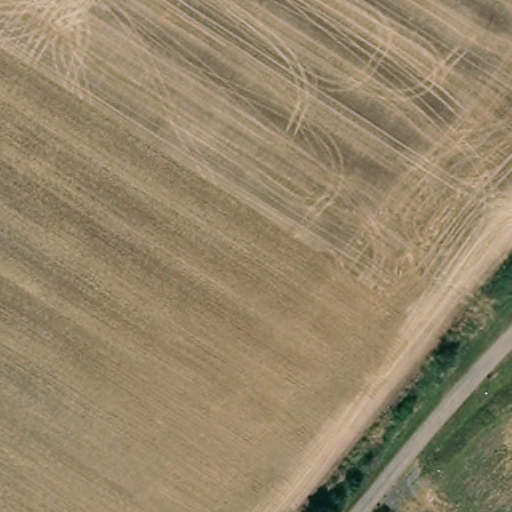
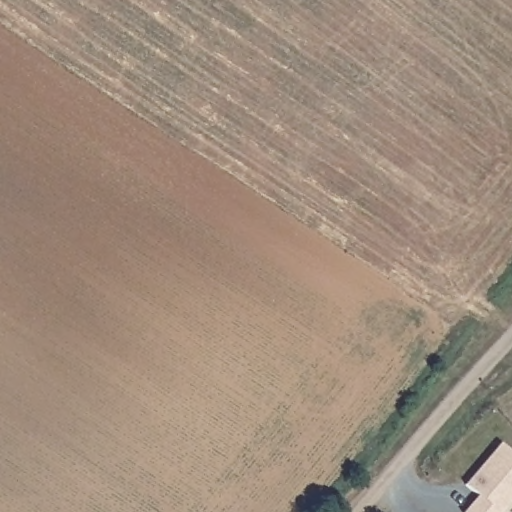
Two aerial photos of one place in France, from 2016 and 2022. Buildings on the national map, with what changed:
new [(477,497),(465,486),(500,444),(512,454),(512,502),(504,512),(464,512),(477,497)]

